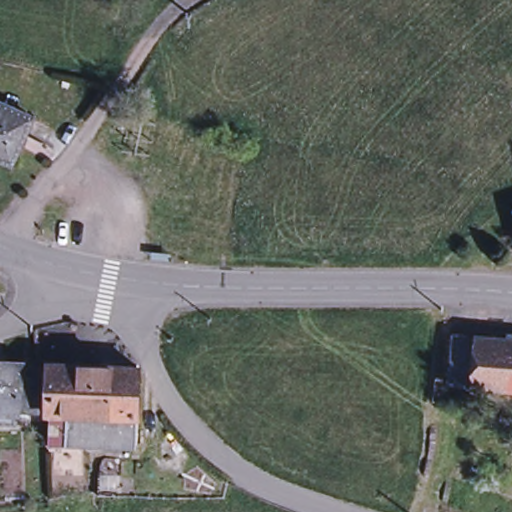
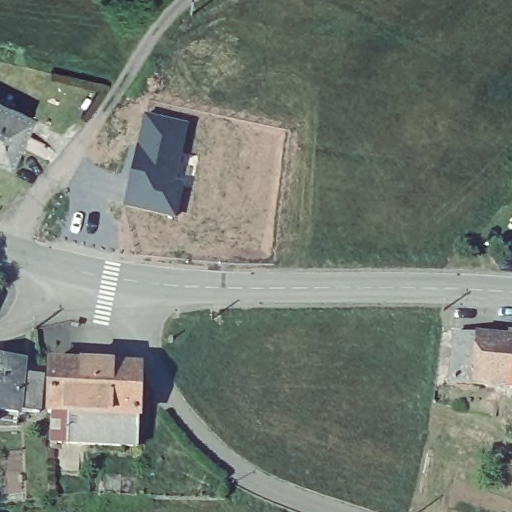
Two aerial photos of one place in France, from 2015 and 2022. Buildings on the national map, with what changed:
unchanged [(35,118),(15,161),(0,154),(0,103),(35,118)]
new [(144,114),(188,121),(179,181),(188,184),(179,216),(124,204),(144,114)]
unchanged [(468,395),(468,388),(453,386),(457,336),(512,342),(507,392),(483,390),(482,396),(468,395)]
unchanged [(512,342),(512,393),(507,392),(512,342)]
unchanged [(23,366),(22,380),(42,381),(40,413),(19,411),(18,425),(0,423),(0,364),(23,366)]
unchanged [(72,366),(141,370),(139,419),(68,415),(49,414),(53,365),(72,366)]
unchanged [(139,419),(138,447),(68,444),(68,415),(139,419)]

